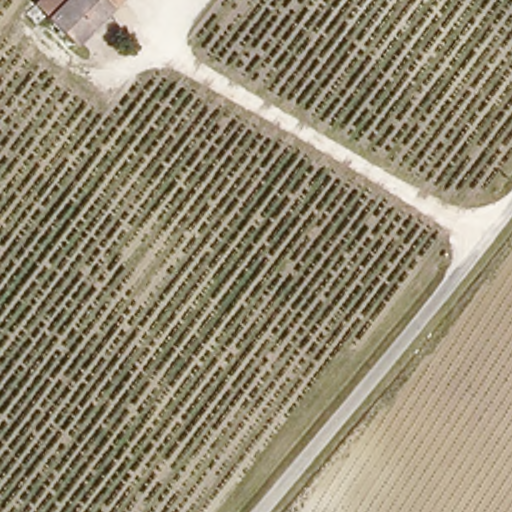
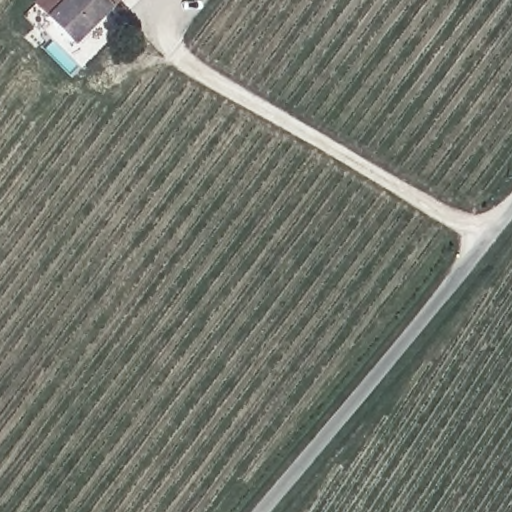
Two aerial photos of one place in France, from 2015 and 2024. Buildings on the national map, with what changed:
unchanged [(34,0),(106,0),(67,38),(32,1),(34,0)]

